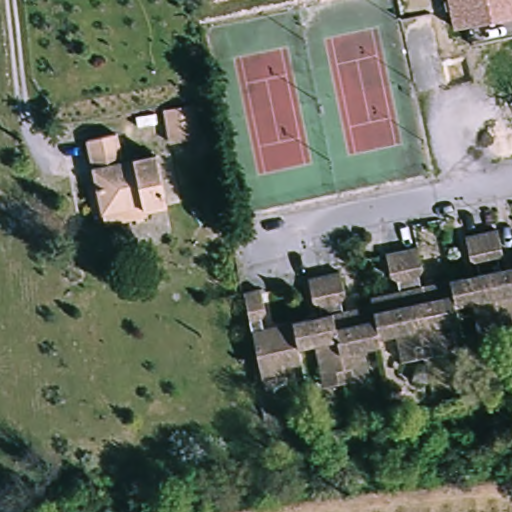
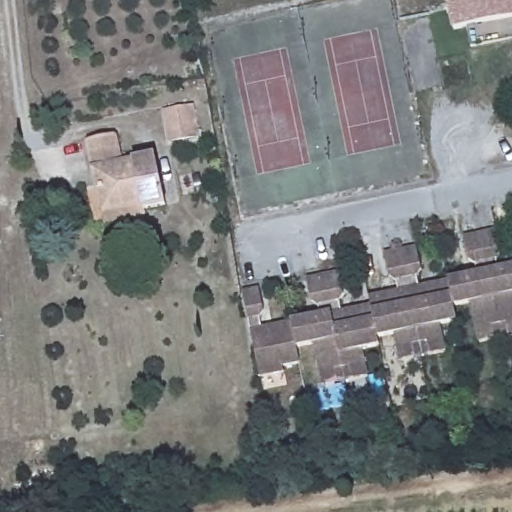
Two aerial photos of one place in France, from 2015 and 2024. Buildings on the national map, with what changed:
unchanged [(448,24),(444,0),(512,0),(512,15),(448,24)]
unchanged [(197,104),(201,131),(168,137),(163,110),(197,104)]
unchanged [(93,219),(87,181),(100,179),(93,137),(128,131),(133,158),(158,153),(167,207),(146,210),(138,211),(93,219)]
unchanged [(340,378),(314,382),(311,369),(309,353),(295,355),(297,370),(279,373),(281,381),(257,385),(243,299),(241,288),(261,284),(261,287),(262,296),(265,310),(258,318),(259,328),(317,319),(316,309),(310,302),(308,288),(306,277),(324,274),(341,271),(346,297),(341,307),(341,315),(366,311),(363,290),(397,285),(395,276),(388,273),(384,251),(419,246),(422,266),(417,283),(482,273),(480,265),(469,257),(465,235),(497,229),(501,253),(496,260),(497,264),(512,262),(512,333),(501,335),(476,339),(474,328),(470,306),(453,309),(455,322),(432,326),(434,338),(436,352),(417,355),(390,359),(388,346),(386,332),(370,335),(373,353),(359,356),(360,362),(362,374),(340,378)]

